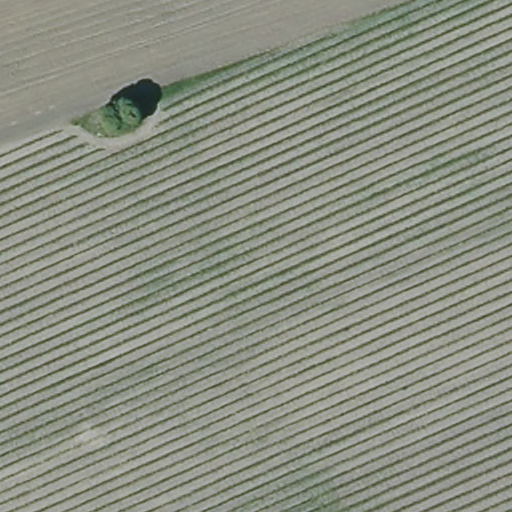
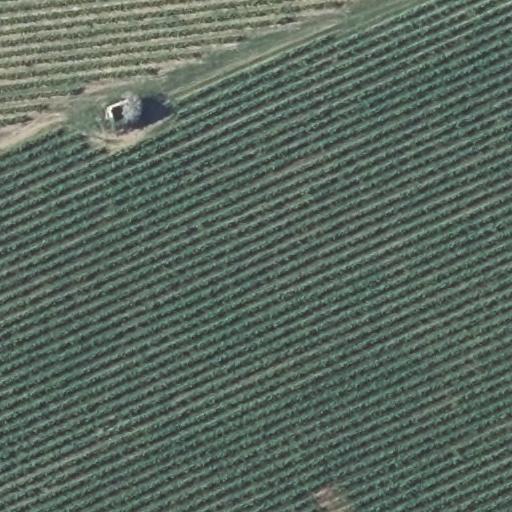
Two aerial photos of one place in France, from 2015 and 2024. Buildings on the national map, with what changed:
unchanged [(131,99),(136,118),(115,126),(106,107),(131,99)]

